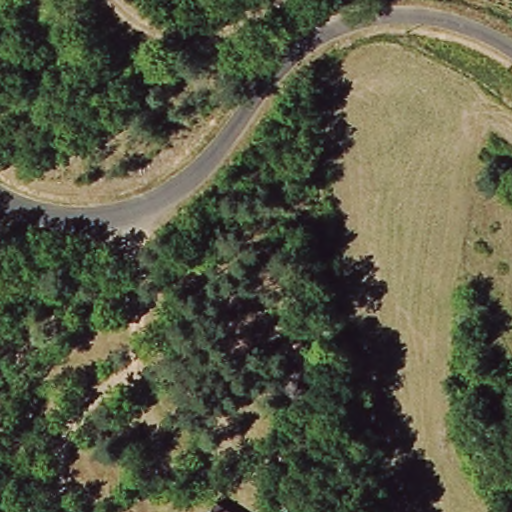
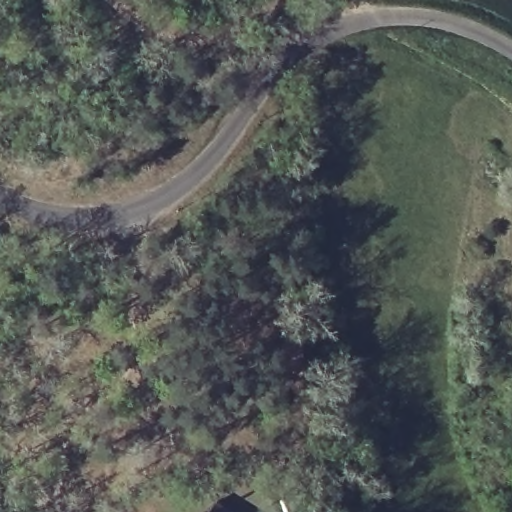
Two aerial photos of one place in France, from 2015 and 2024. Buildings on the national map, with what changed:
unchanged [(315,348),(317,381),(301,383),(296,353),(315,348)]
unchanged [(222,505),(231,512),(217,512),(222,505)]

